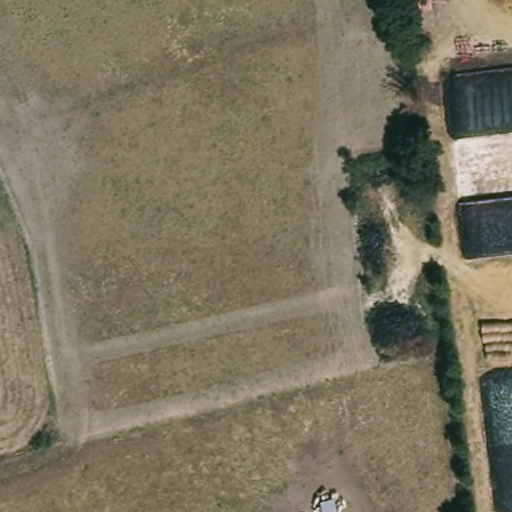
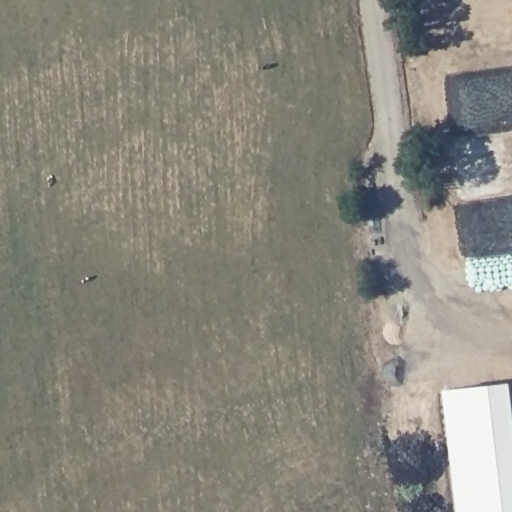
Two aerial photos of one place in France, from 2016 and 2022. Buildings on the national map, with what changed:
new [(512,380),(512,512),(459,512),(446,387),(512,380)]

